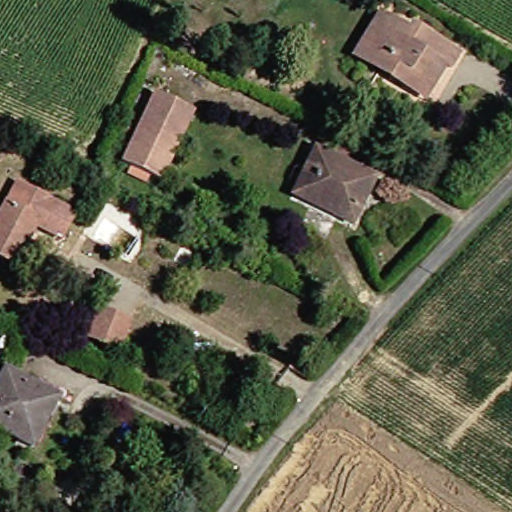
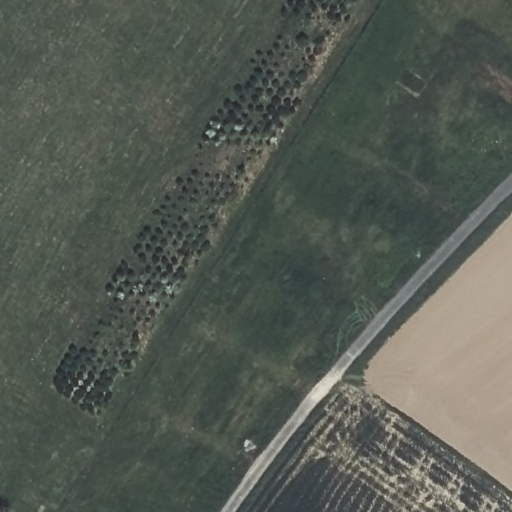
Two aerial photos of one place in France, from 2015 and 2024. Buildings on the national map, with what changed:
demolished [(386,10),(415,28),(418,23),(463,52),(455,67),(431,52),(423,47),(402,81),(392,75),(396,68),(363,49),(386,10)]
demolished [(166,179),(127,160),(160,92),(198,110),(166,179)]
demolished [(337,212),(342,200),(304,182),(325,144),(382,175),(359,224),(337,212)]
demolished [(19,261),(0,252),(0,223),(22,180),(59,199),(47,220),(41,216),(19,261)]
demolished [(0,428),(0,392),(10,372),(63,398),(38,447),(0,428)]

